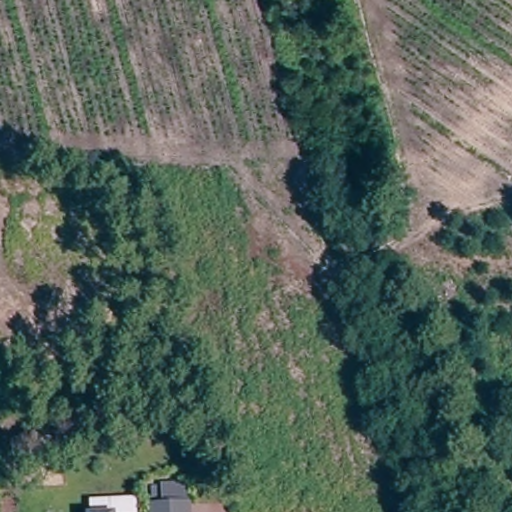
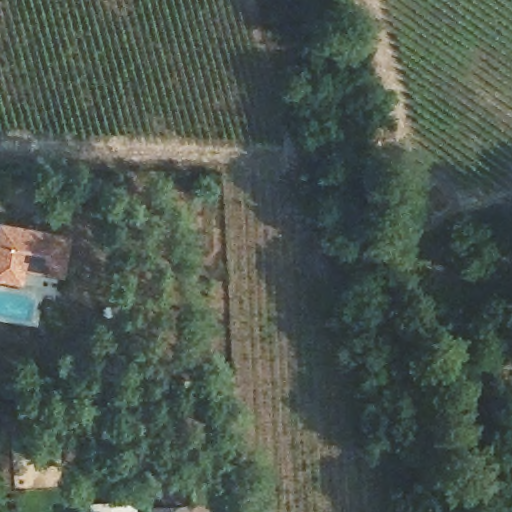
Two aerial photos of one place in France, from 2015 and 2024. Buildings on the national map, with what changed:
new [(64,276),(25,270),(23,283),(18,282),(18,286),(0,282),(0,220),(71,233),(64,276)]
unchanged [(161,506),(160,488),(184,487),(185,505),(185,512),(150,512),(150,507),(161,506)]
unchanged [(89,510),(89,498),(135,497),(137,512),(86,512),(89,510)]

